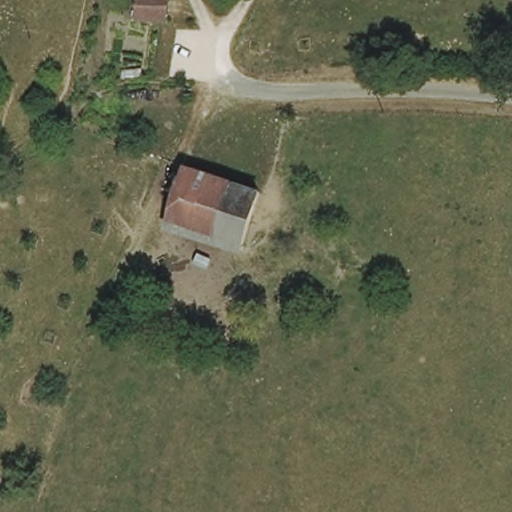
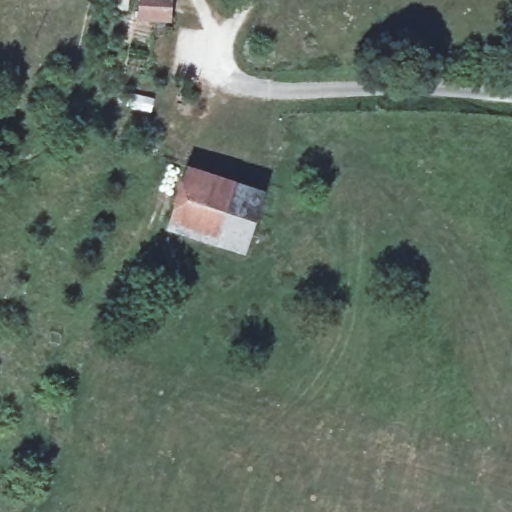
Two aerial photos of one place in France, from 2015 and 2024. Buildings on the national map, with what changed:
unchanged [(137,14),(139,0),(168,0),(166,16),(137,14)]
unchanged [(170,215),(188,161),(262,184),(245,239),(170,215)]

